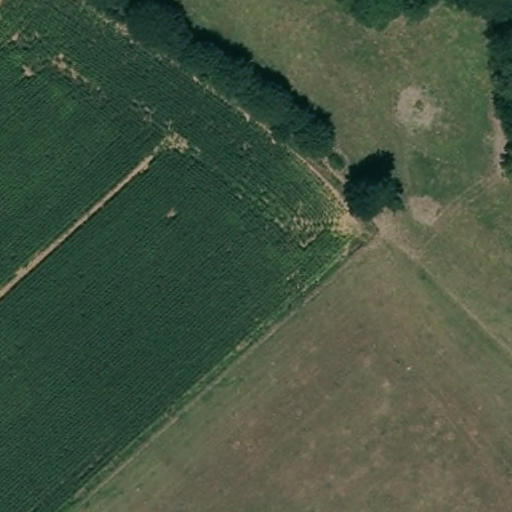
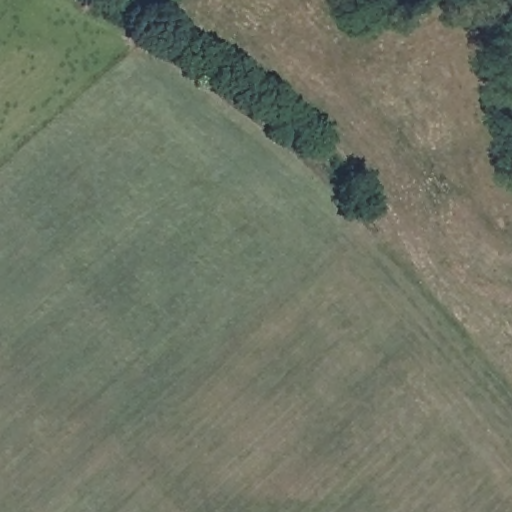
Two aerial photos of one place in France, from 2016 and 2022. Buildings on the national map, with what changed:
[]

